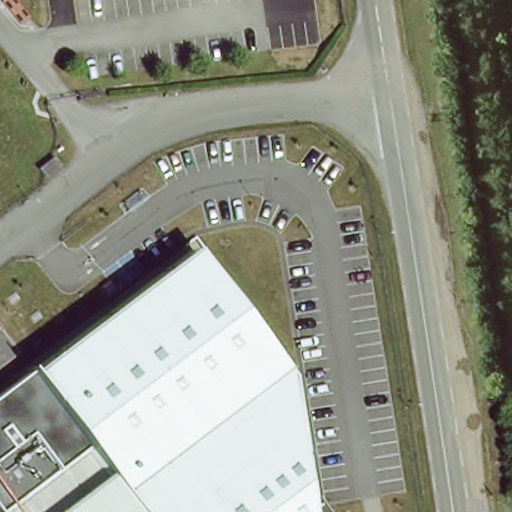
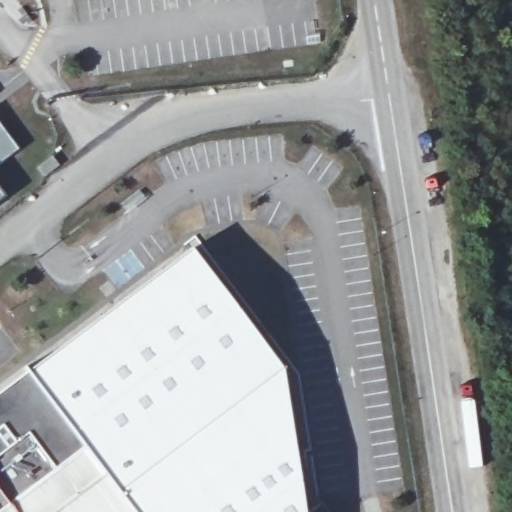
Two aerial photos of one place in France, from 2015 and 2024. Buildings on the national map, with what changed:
new [(0,164),(0,124),(19,149),(0,164)]
new [(0,198),(0,194),(2,196),(0,198)]
unchanged [(286,370),(308,512),(0,512),(0,393),(29,371),(194,248),(286,370)]

